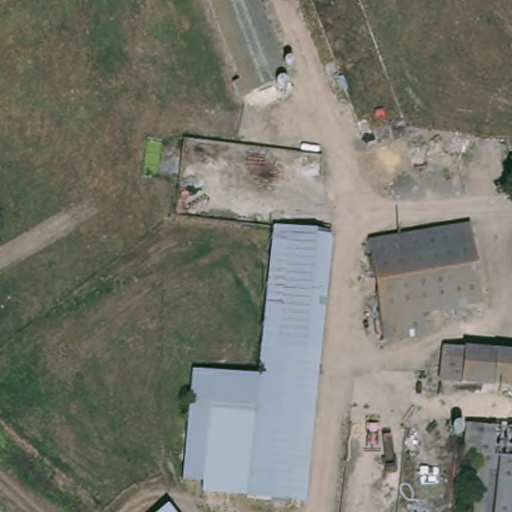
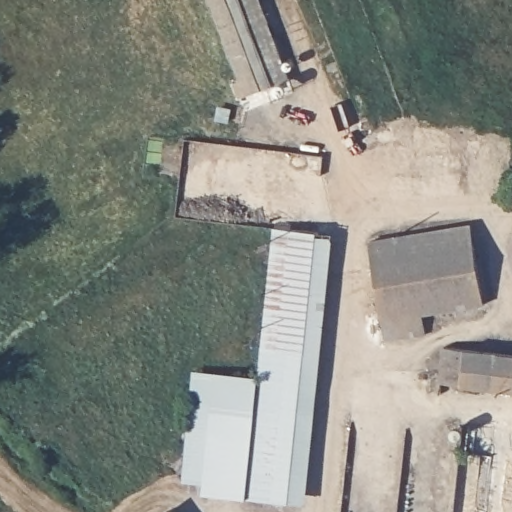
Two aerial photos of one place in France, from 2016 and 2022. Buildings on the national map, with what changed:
unchanged [(286,81),(242,96),(208,0),(257,0),(286,81)]
unchanged [(471,224),(477,306),(421,314),(423,335),(385,340),(369,240),(471,224)]
unchanged [(334,234),(302,505),(265,501),(257,500),(270,392),(273,369),(276,347),(288,243),(290,229),(320,232),(334,234)]
unchanged [(496,353),(498,336),(512,337),(512,392),(438,385),(442,347),(496,353)]
unchanged [(273,369),(270,392),(207,385),(208,373),(209,364),(273,369)]
unchanged [(207,385),(270,392),(257,500),(206,494),(205,483),(197,482),(207,385)]
unchanged [(462,457),(467,426),(512,431),(512,512),(472,512),(477,459),(462,457)]
unchanged [(165,512),(169,509),(171,512),(165,512)]

